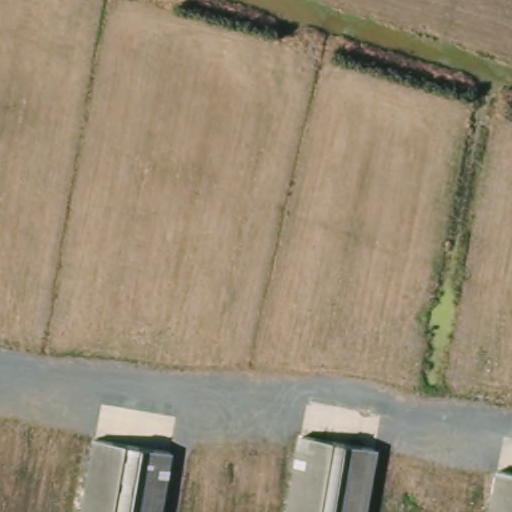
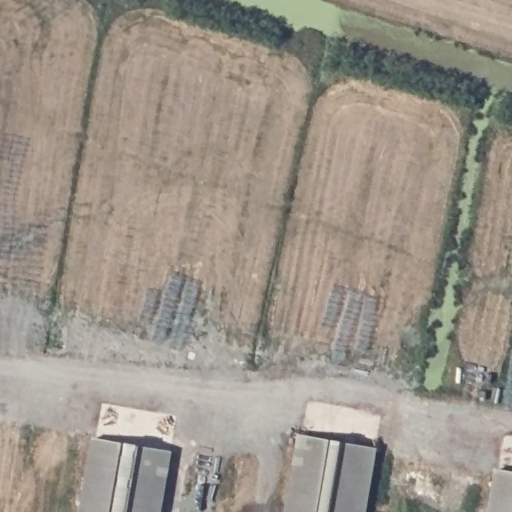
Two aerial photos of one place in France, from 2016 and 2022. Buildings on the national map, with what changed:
unchanged [(364,512),(292,512),(304,443),(374,455),(364,512)]
unchanged [(172,465),(164,512),(90,512),(100,453),(172,465)]
unchanged [(512,481),(512,512),(493,512),(498,479),(512,481)]

